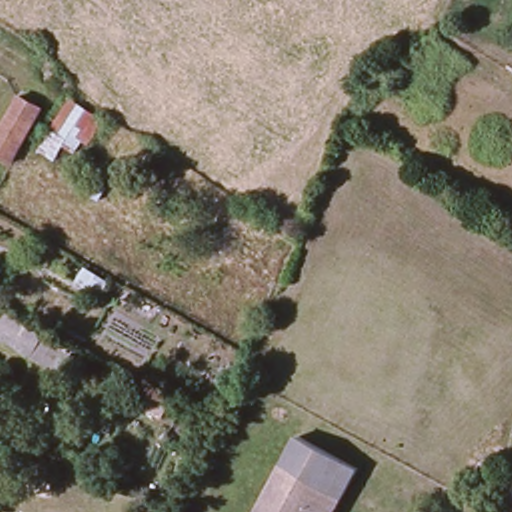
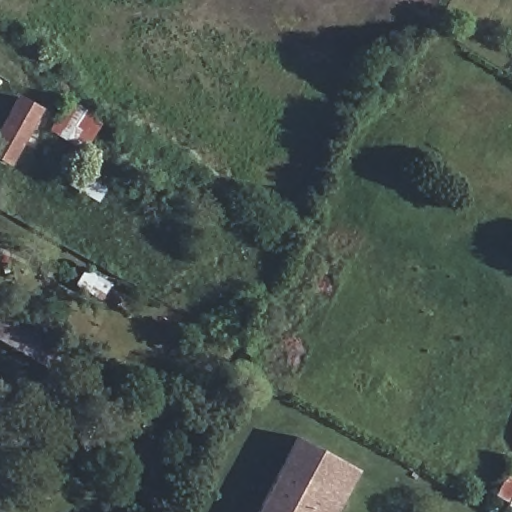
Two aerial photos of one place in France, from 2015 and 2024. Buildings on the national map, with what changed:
unchanged [(12,169),(0,162),(0,135),(18,102),(41,116),(20,155),(12,169)]
unchanged [(87,151),(79,147),(74,158),(60,153),(53,167),(35,159),(65,105),(99,127),(87,151)]
unchanged [(69,192),(76,178),(103,192),(96,205),(69,192)]
unchanged [(41,368),(0,344),(0,318),(53,348),(62,353),(51,373),(41,368)]
unchanged [(165,417),(159,414),(161,408),(168,411),(165,417)]
unchanged [(337,512),(258,512),(295,442),(357,476),(337,512)]
unchanged [(500,503),(509,478),(512,481),(512,511),(500,503)]

